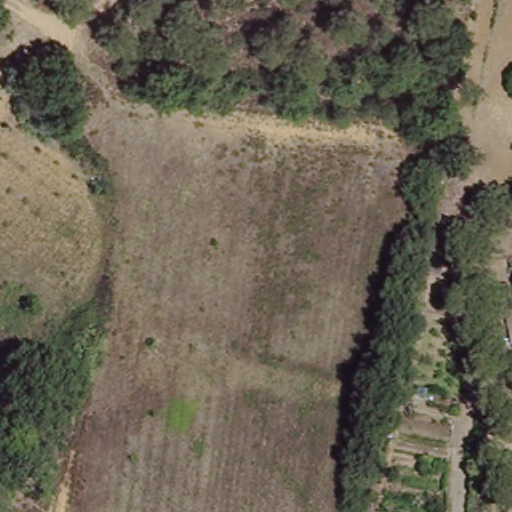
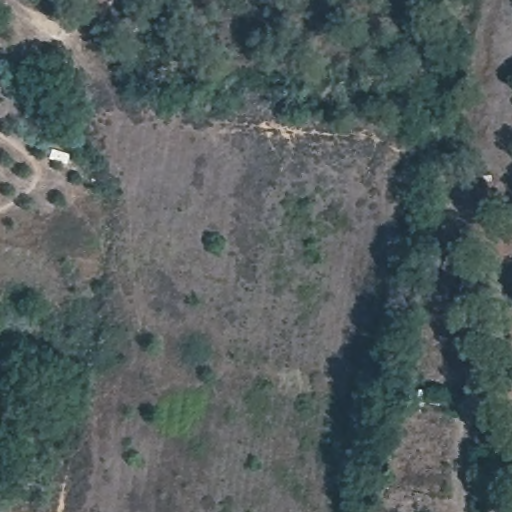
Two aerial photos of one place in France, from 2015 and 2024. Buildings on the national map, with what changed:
unchanged [(512,312),(512,333),(507,313),(512,312)]

